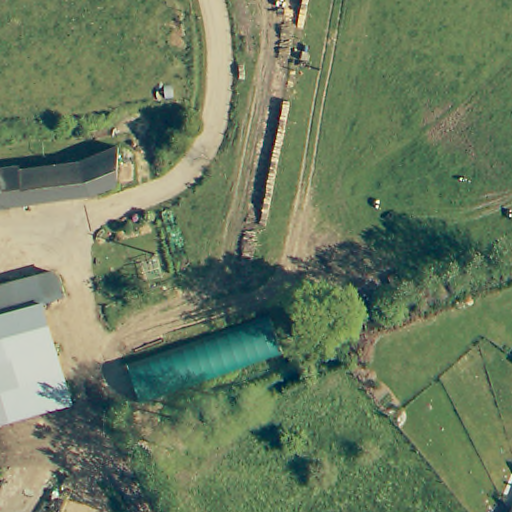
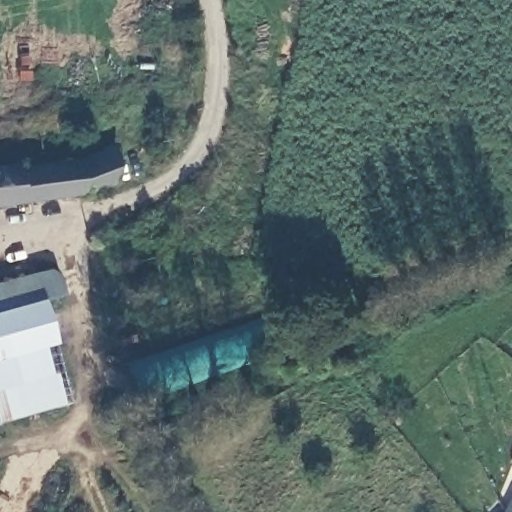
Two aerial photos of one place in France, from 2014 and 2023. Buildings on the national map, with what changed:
unchanged [(26,170),(86,160),(122,145),(120,181),(89,191),(0,204),(0,167),(25,164),(26,170)]
unchanged [(0,305),(0,279),(51,266),(52,271),(57,270),(61,290),(0,305)]
unchanged [(0,308),(37,298),(58,375),(62,386),(0,403),(0,308)]
unchanged [(270,320),(282,355),(141,403),(128,367),(270,320)]

